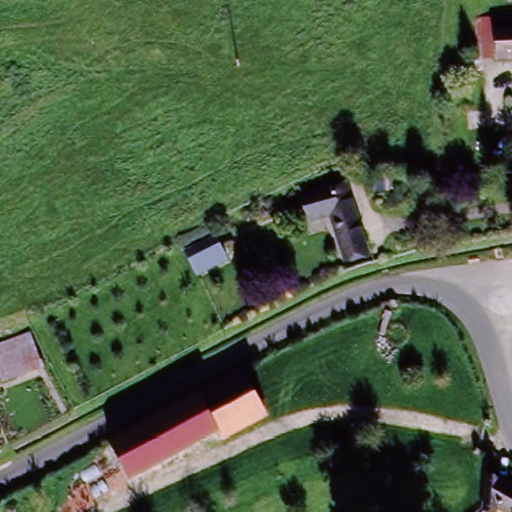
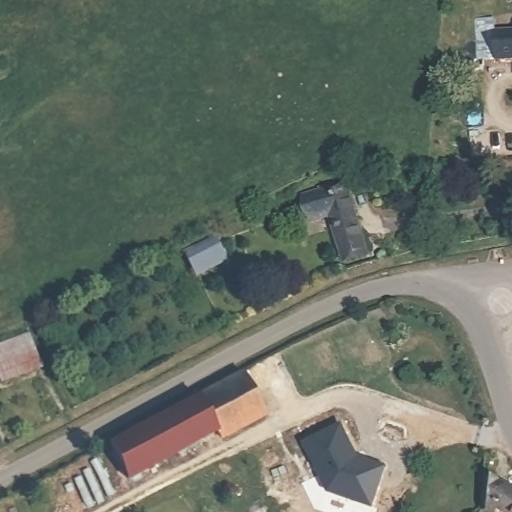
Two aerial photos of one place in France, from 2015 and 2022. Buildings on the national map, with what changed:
unchanged [(501,62),(500,37),(512,36),(512,62),(501,62)]
unchanged [(324,225),(305,232),(292,204),(312,196),(312,192),(333,185),(359,253),(336,261),(324,225)]
unchanged [(229,270),(222,273),(214,278),(202,285),(188,257),(216,245),(229,270)]
unchanged [(0,337),(27,328),(43,371),(2,387),(0,381),(0,337)]
unchanged [(243,372),(267,416),(224,441),(220,436),(199,396),(243,372)]
unchanged [(114,450),(111,445),(199,396),(220,436),(210,441),(132,482),(114,450)]
new [(360,458),(390,470),(376,512),(325,492),(304,445),(343,426),(360,458)]
unchanged [(506,512),(512,502),(512,512),(506,512)]

